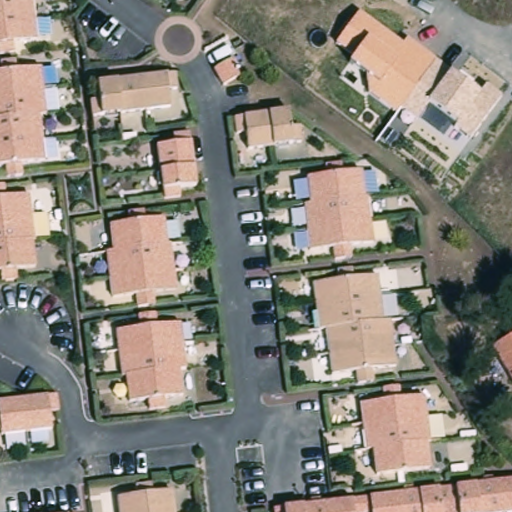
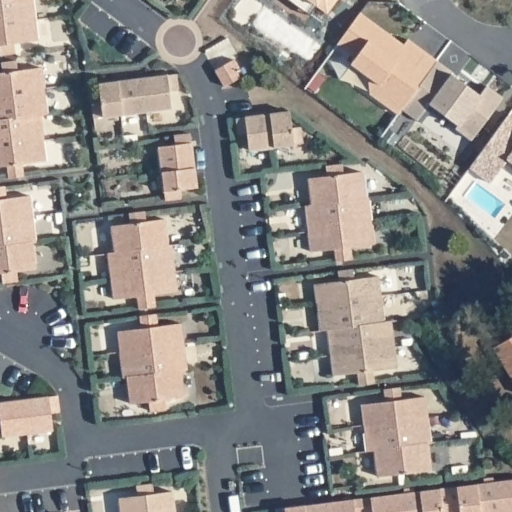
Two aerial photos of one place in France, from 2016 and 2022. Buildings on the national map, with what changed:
unchanged [(16,50),(0,53),(0,0),(34,0),(39,39),(14,43),(16,50)]
new [(325,13),(307,0),(335,0),(325,13)]
unchanged [(402,42),(405,36),(480,91),(487,82),(502,91),(471,138),(427,103),(416,118),(399,107),(396,110),(367,89),(371,80),(347,63),(354,52),(337,43),(360,8),(402,42)]
unchanged [(40,115),(47,160),(23,164),(24,174),(9,176),(7,165),(0,166),(0,73),(1,73),(0,63),(15,60),(18,71),(42,67),(48,114),(40,115)]
unchanged [(233,62),(242,77),(226,86),(217,71),(233,62)]
unchanged [(105,122),(105,116),(93,118),(91,101),(99,100),(98,83),(177,73),(179,90),(170,92),(172,108),(116,115),(118,121),(105,122)]
unchanged [(292,128),(300,126),(302,144),(249,151),(247,133),(239,134),(236,118),(289,112),(292,128)]
new [(508,113),(512,116),(512,161),(507,157),(489,181),(469,166),(508,113)]
unchanged [(156,171),(162,170),(158,142),(175,140),(173,131),(191,129),(197,182),(180,185),(181,193),(165,196),(163,181),(158,181),(156,171)]
unchanged [(354,247),(357,258),(340,261),(339,248),(315,251),(309,206),(316,205),(312,178),(331,176),(331,166),(347,164),(349,174),(366,172),(370,198),(372,197),(379,244),(354,247)]
unchanged [(33,241),(36,268),(16,271),(17,279),(2,281),(0,272),(0,273),(0,187),(4,186),(6,198),(30,195),(35,241),(33,241)]
unchanged [(108,252),(113,251),(110,226),(128,223),(127,213),(145,210),(146,221),(164,218),(167,243),(171,243),(177,290),(154,293),(155,304),(138,307),(136,295),(113,298),(108,252)]
unchanged [(343,280),(342,271),(357,268),(359,278),(382,275),(388,321),(394,320),(401,366),(377,369),(378,381),(362,383),(360,372),(338,375),(331,328),(325,329),(318,284),(343,280)]
unchanged [(187,368),(180,369),(183,395),(164,398),(166,408),(150,410),(148,400),(129,402),(126,376),(123,377),(117,331),(140,327),(139,315),(155,313),(157,325),(180,322),(187,368)]
unchanged [(512,336),(512,379),(493,347),(512,336)]
unchanged [(376,475),(372,449),(365,449),(361,403),(384,400),(383,388),(398,386),(400,398),(424,395),(429,441),(425,441),(428,469),(376,475)]
unchanged [(49,411),(51,428),(1,435),(0,424),(0,402),(56,394),(58,410),(49,411)]
unchanged [(320,502),(320,498),(330,496),(331,501),(412,491),(412,486),(422,485),(423,489),(492,481),(491,477),(501,474),(501,479),(512,478),(512,512),(511,512),(285,512),(284,507),(320,502)]
unchanged [(141,493),(139,483),(157,481),(158,491),(175,489),(179,512),(124,512),(122,496),(141,493)]

